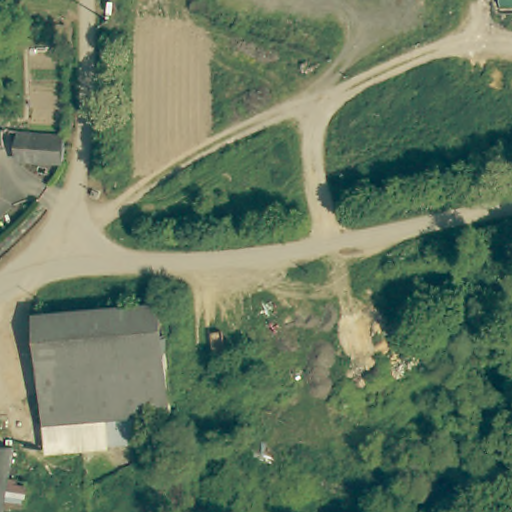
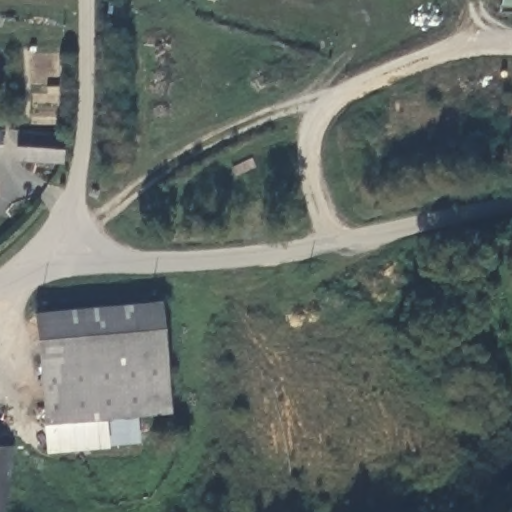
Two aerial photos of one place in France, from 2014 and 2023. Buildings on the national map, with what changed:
unchanged [(512,0),(512,2),(495,1),(496,0),(512,0)]
unchanged [(57,156),(15,156),(14,129),(42,128),(56,128),(57,156)]
unchanged [(37,310),(160,301),(165,364),(65,372),(67,403),(43,404),(37,310)]
unchanged [(67,403),(65,372),(165,364),(169,413),(44,419),(43,404),(67,403)]
unchanged [(12,449),(14,450),(4,512),(0,512),(0,447),(12,449)]

